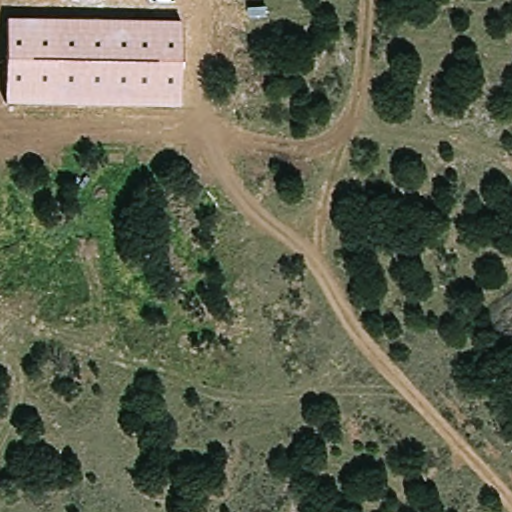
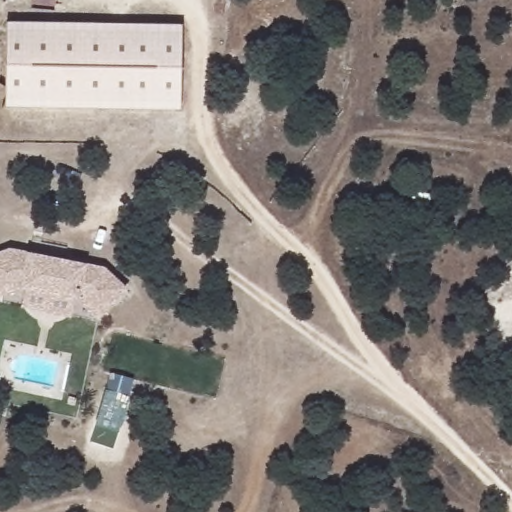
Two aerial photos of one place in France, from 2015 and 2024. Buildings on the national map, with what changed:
unchanged [(181,109),(6,106),(7,21),(182,24),(181,109)]
new [(6,257),(100,275),(121,295),(95,323),(74,304),(71,303),(22,295),(19,294),(0,301),(0,259),(6,257)]
new [(22,295),(71,303),(68,323),(18,314),(22,295)]

